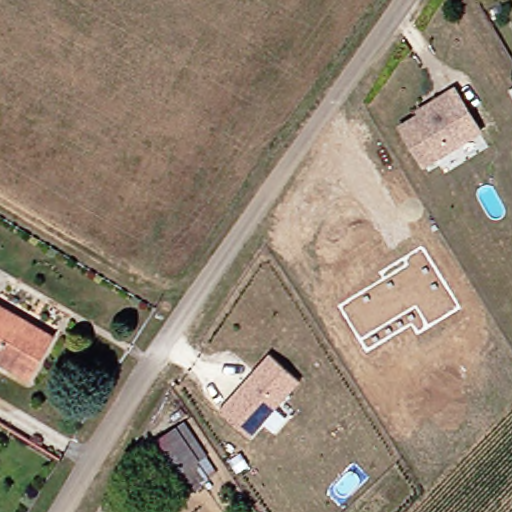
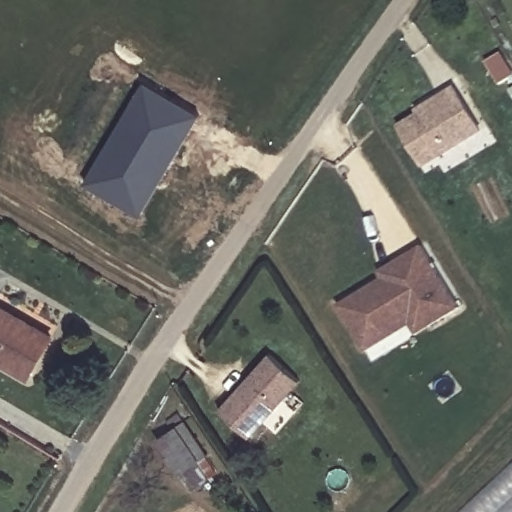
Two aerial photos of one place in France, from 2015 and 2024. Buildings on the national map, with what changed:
new [(143,217),(87,184),(145,80),(202,114),(143,217)]
unchanged [(512,88),(512,100),(507,91),(512,88)]
unchanged [(482,132),(425,166),(400,127),(422,114),(423,116),(443,104),(440,98),(455,89),(482,132)]
unchanged [(415,334),(412,326),(367,352),(338,305),(382,278),(379,271),(423,246),(460,307),(415,334)]
unchanged [(0,361),(0,307),(51,336),(27,377),(0,361)]
unchanged [(246,379),(270,352),(300,380),(250,437),(219,410),(242,384),(246,379)]
unchanged [(212,466),(185,484),(162,450),(188,432),(212,466)]
new [(464,512),(512,467),(512,512),(464,512)]

